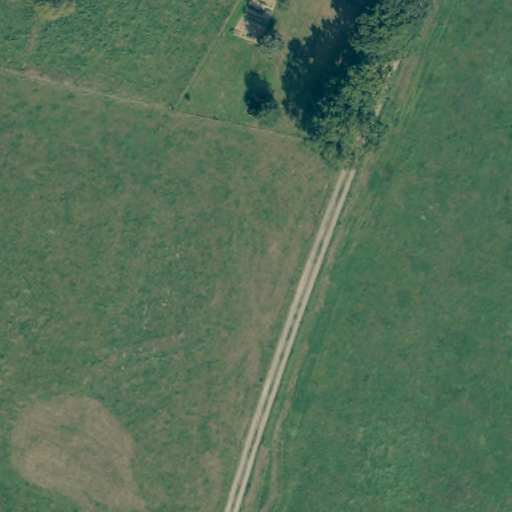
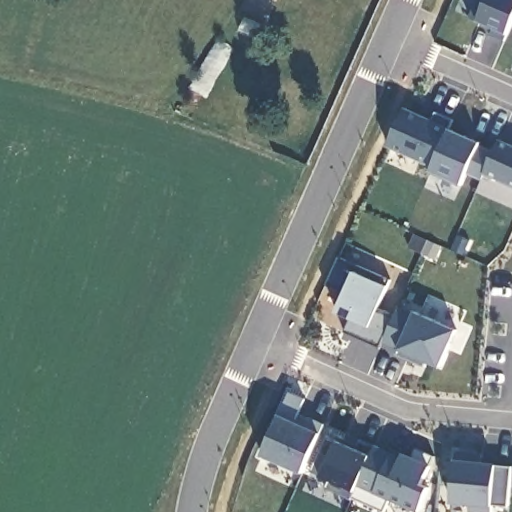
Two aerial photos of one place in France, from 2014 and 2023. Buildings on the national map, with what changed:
new [(491,36),(495,29),(479,21),(470,19),(478,0),(484,0),(487,2),(488,0),(512,0),(512,25),(504,41),(491,36)]
new [(406,109),(432,120),(436,113),(453,121),(449,129),(479,143),(496,153),(501,141),(512,146),(512,186),(484,175),(481,180),(467,174),(462,185),(431,172),(434,168),(387,147),(406,109)]
new [(440,367),(399,351),(381,342),(379,348),(345,332),(351,321),(335,313),(346,292),(325,285),(339,259),(358,266),(356,272),(388,287),(378,309),(394,316),(398,307),(416,314),(456,331),(440,367)]
new [(320,433),(303,474),(262,457),(280,415),(290,393),(305,399),(296,421),(307,426),(311,418),(324,424),(320,433)]
new [(326,438),(338,441),(372,455),(377,447),(402,459),(404,454),(411,458),(415,448),(434,457),(431,465),(422,484),(430,488),(418,512),(414,512),(356,485),(353,491),(350,500),(327,490),(332,481),(321,476),(311,472),(326,438)]
new [(508,508),(492,508),(492,512),(471,512),(471,506),(452,504),(456,459),(458,453),(481,455),(479,463),(497,465),(512,468),(508,508)]

